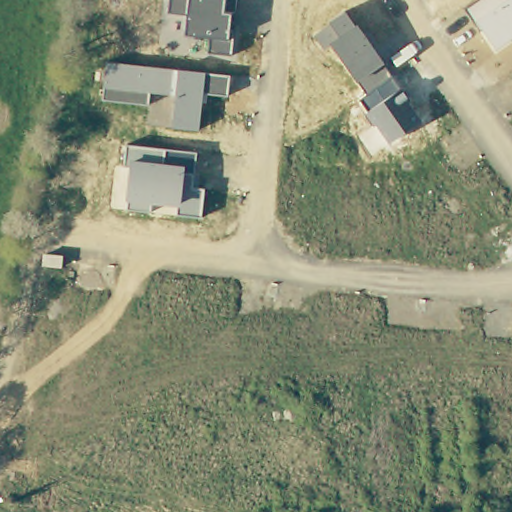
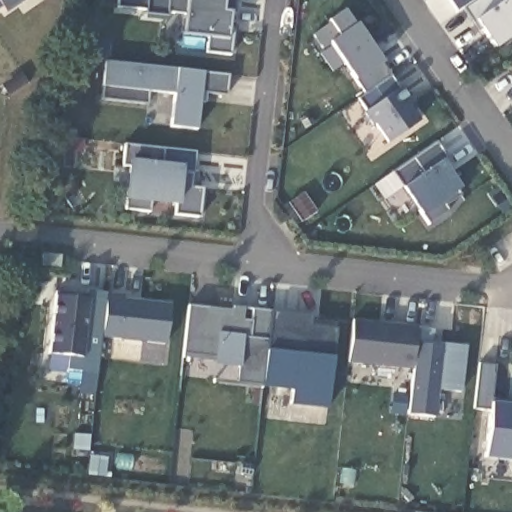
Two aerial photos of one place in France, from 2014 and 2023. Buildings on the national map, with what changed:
new [(7,12),(3,7),(0,9),(0,0),(25,0),(7,12)]
new [(118,0),(169,0),(168,12),(168,16),(146,14),(146,10),(118,6),(118,0)]
unchanged [(235,14),(230,13),(228,29),(232,30),(231,54),(208,51),(209,37),(184,34),(186,15),(168,12),(169,0),(236,0),(235,14)]
unchanged [(496,48),(482,29),(479,30),(465,9),(478,0),(512,0),(512,37),(496,48)]
unchanged [(355,25),(357,23),(384,64),(422,120),(389,141),(358,100),(366,94),(329,44),(323,49),(313,36),(329,21),(344,12),(355,25)]
unchanged [(227,95),(207,94),(206,102),(202,101),(199,129),(172,125),(175,95),(149,91),(146,105),(103,99),(106,61),(230,75),(227,95)]
new [(26,72),(32,82),(13,95),(6,85),(26,72)]
new [(422,215),(403,189),(394,172),(437,142),(448,157),(443,162),(461,187),(459,190),(462,195),(444,206),(448,212),(429,225),(422,215)]
unchanged [(193,186),(203,189),(200,216),(177,214),(178,205),(151,202),(151,210),(128,209),(129,200),(126,200),(130,165),(125,165),(126,145),(196,151),(193,186)]
new [(81,371),(66,370),(67,354),(48,353),(56,294),(80,296),(81,288),(125,293),(124,299),(173,303),(169,346),(104,339),(96,396),(80,395),(81,371)]
new [(187,305),(230,310),(231,306),(314,316),(313,325),(337,329),(335,355),(329,410),(291,406),(293,391),(235,384),(238,367),(216,365),(216,360),(180,357),(187,305)]
new [(354,320),(436,329),(434,342),(466,346),(461,392),(439,390),(436,417),(410,414),(415,370),(350,362),(354,320)]
new [(491,409),(472,408),(478,363),(497,365),(495,400),(512,402),(512,461),(484,457),(491,409)]

